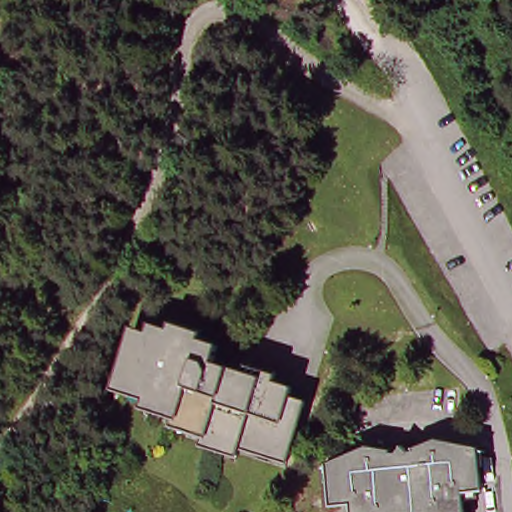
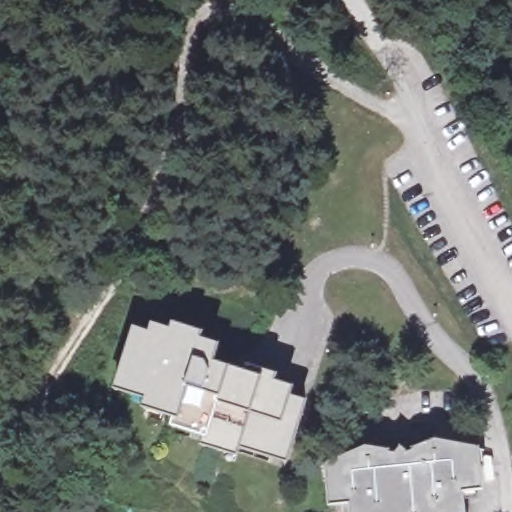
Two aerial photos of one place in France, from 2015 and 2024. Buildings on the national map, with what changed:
unchanged [(291,461),(244,447),(241,456),(204,445),(207,437),(174,427),(177,417),(146,407),(149,398),(117,388),(136,327),(152,332),(155,324),(173,330),(175,323),(206,332),(204,340),(223,345),(217,362),(233,366),(249,371),(249,366),(280,374),(279,381),(296,386),(294,395),(310,400),(291,461)]
unchanged [(331,461),(369,448),(394,460),(409,435),(427,447),(448,435),(494,447),(491,460),(477,459),(478,478),(463,479),(464,497),(470,498),(470,510),(460,512),(352,512),(351,497),(333,497),(331,461)]

